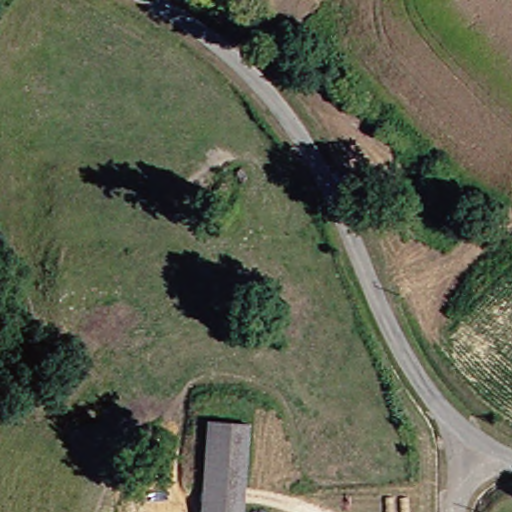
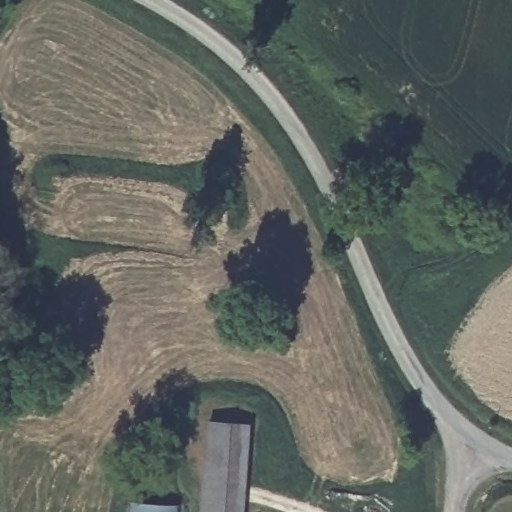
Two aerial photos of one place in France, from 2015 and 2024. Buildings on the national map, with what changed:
unchanged [(215,423),(257,426),(250,512),(208,512),(215,423)]
new [(132,502),(184,507),(184,512),(131,512),(132,502)]

